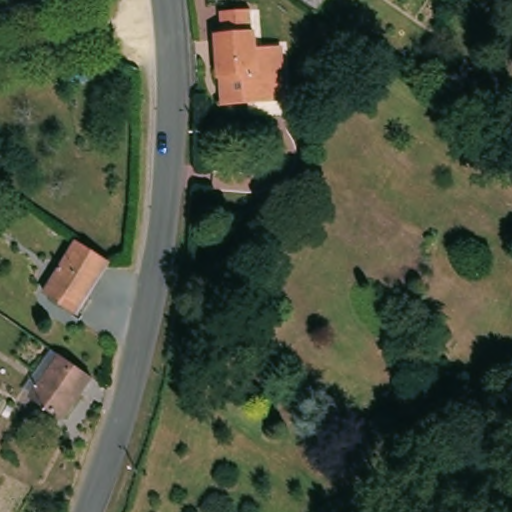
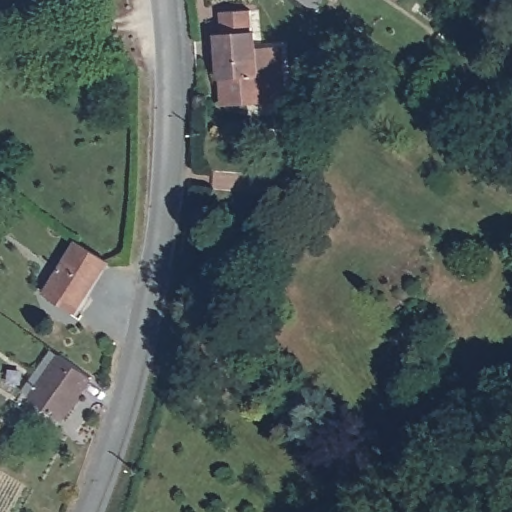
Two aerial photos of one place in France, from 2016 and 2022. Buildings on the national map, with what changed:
unchanged [(292,0),(318,0),(309,12),(292,0)]
unchanged [(211,37),(217,37),(215,14),(245,12),(246,34),(251,34),(252,51),(255,77),(217,81),(215,81),(211,37)]
unchanged [(277,51),(278,102),(217,104),(217,81),(255,77),(252,51),(277,51)]
unchanged [(107,263),(73,308),(43,290),(79,242),(107,263)]
unchanged [(90,378),(62,420),(30,396),(60,356),(90,378)]

